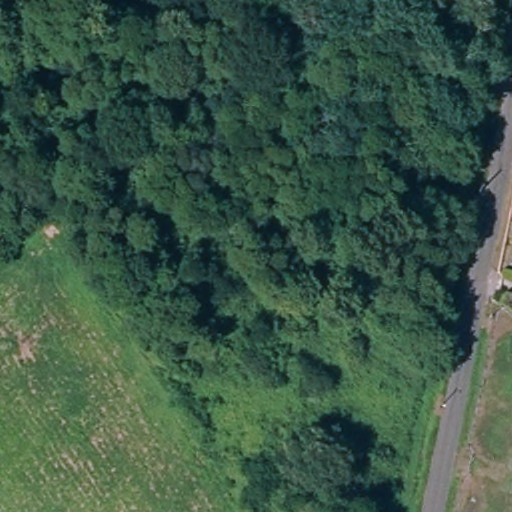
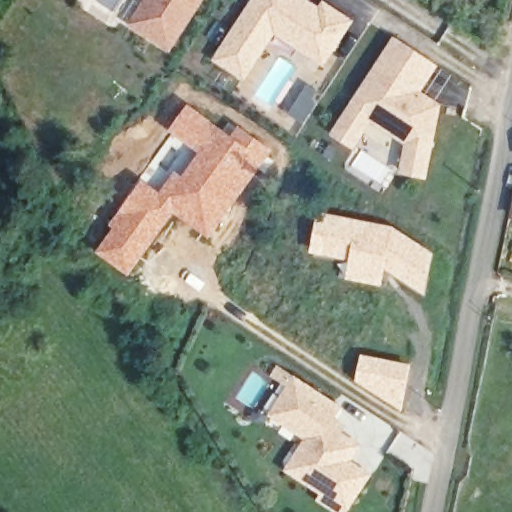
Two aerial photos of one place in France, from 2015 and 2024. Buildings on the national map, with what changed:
new [(205,1),(171,53),(129,26),(146,0),(206,0),(205,1)]
new [(320,6),(324,0),(326,0),(356,21),(325,69),(276,36),(245,82),(213,61),(252,0),(310,0),(320,6)]
new [(400,174),(407,145),(375,121),(355,150),(331,135),(395,35),(440,64),(424,92),(443,104),(429,179),(400,174)]
new [(305,83),(323,95),(303,124),(285,110),(305,83)]
new [(112,228),(109,225),(142,177),(159,190),(175,170),(182,175),(198,153),(168,130),(189,103),(231,133),(238,125),(273,149),(248,185),(208,238),(175,213),(129,276),(96,251),(112,228)]
new [(318,210),(392,225),(436,253),(425,293),(385,270),(382,286),(345,278),(348,261),(309,252),(318,210)]
unchanged [(512,210),(512,215),(511,215),(512,210)]
new [(360,352),(412,363),(401,410),(354,381),(360,352)]
new [(321,494),(284,471),(306,440),(268,417),(289,387),(272,377),(280,365),(344,405),(336,418),(347,425),(344,432),(364,445),(353,461),(374,474),(350,512),(333,512),(317,502),(321,494)]

